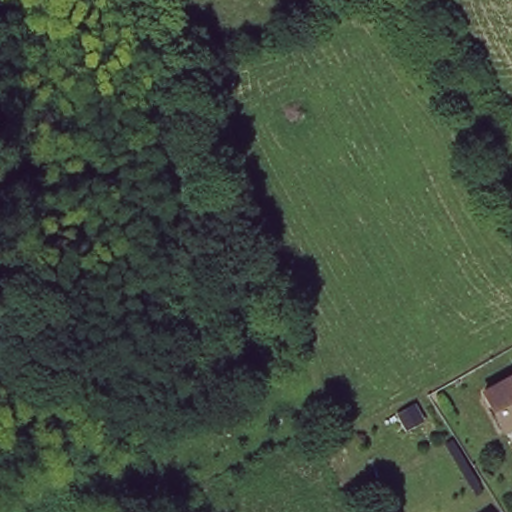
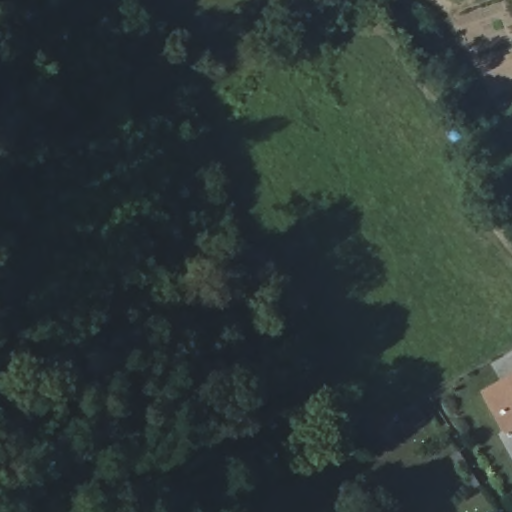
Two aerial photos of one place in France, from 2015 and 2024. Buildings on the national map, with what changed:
unchanged [(503,430),(500,424),(483,390),(512,376),(512,433),(506,436),(503,430)]

